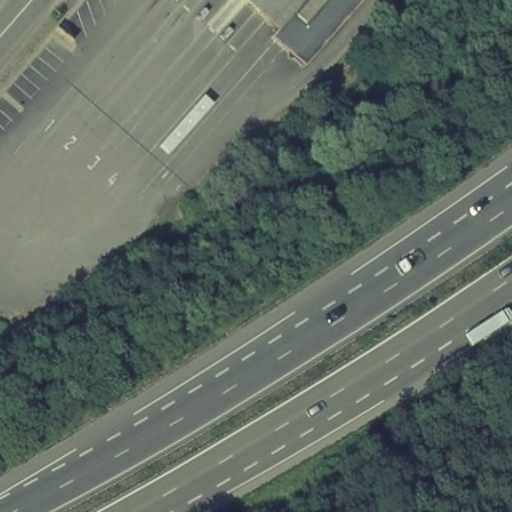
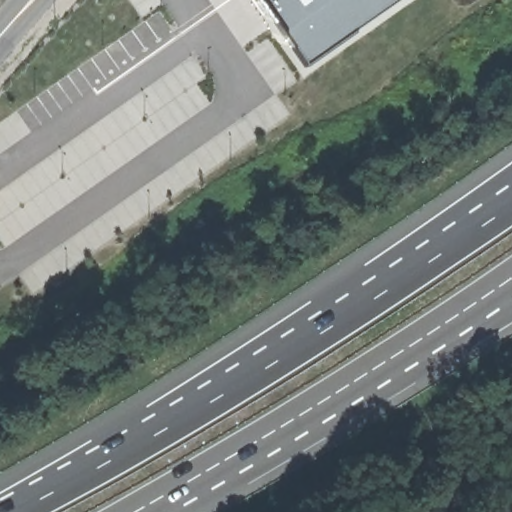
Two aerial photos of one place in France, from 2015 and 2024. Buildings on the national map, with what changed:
demolished [(276,42),(278,36),(241,0),(373,0),(315,71),(276,42)]
new [(257,0),(403,0),(305,69),(257,0)]

